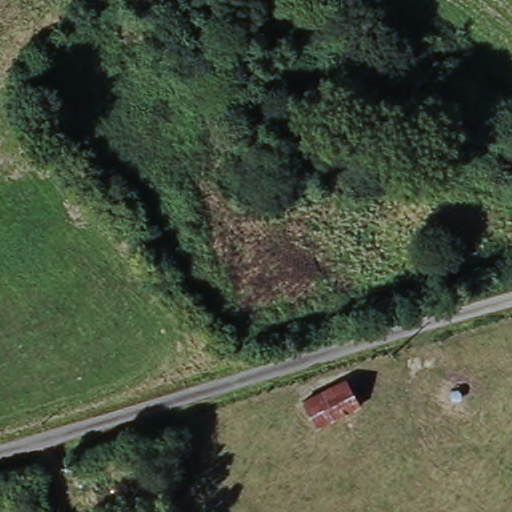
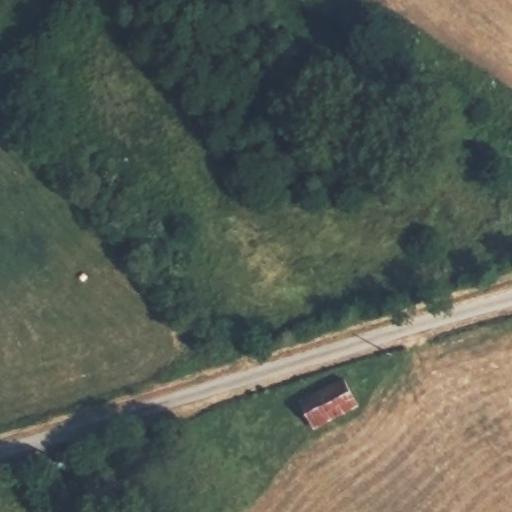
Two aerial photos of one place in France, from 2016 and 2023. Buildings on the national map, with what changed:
unchanged [(346,381),(360,406),(318,429),(303,403),(346,381)]

